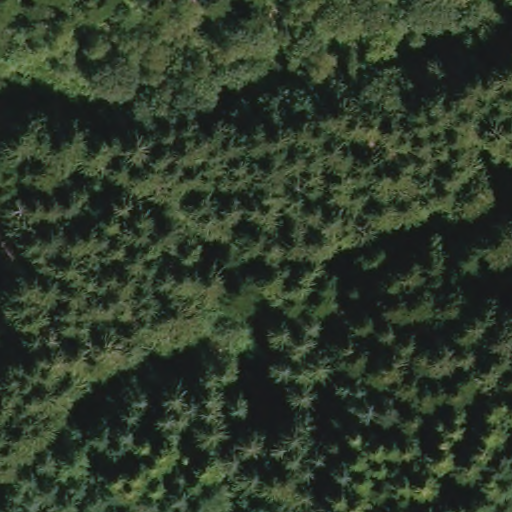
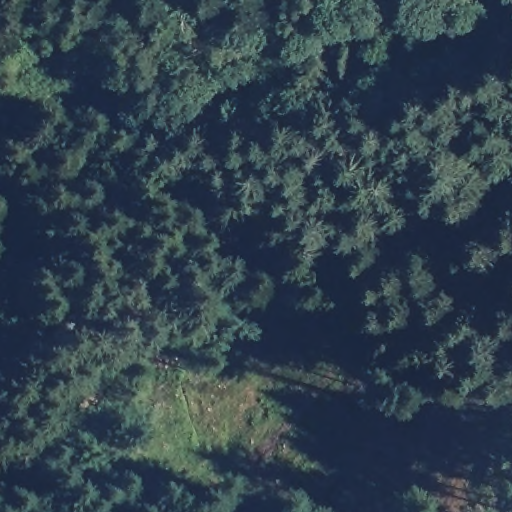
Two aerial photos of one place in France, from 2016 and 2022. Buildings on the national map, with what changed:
[]

